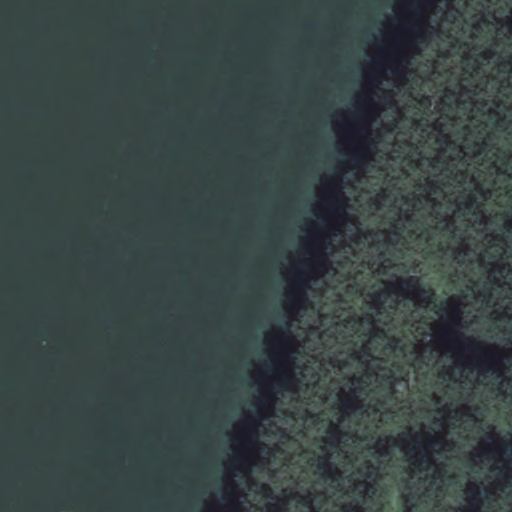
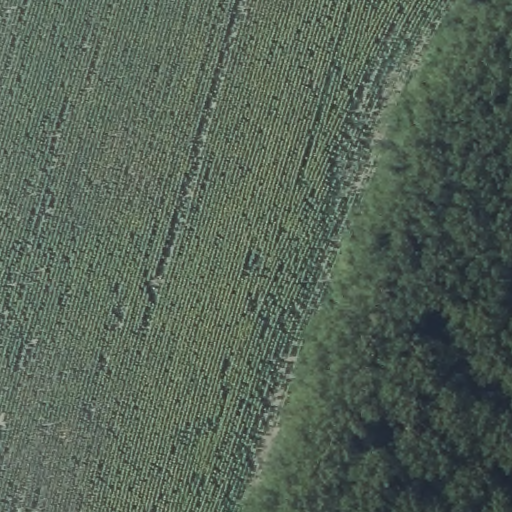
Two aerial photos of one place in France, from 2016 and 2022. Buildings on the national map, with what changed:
[]

